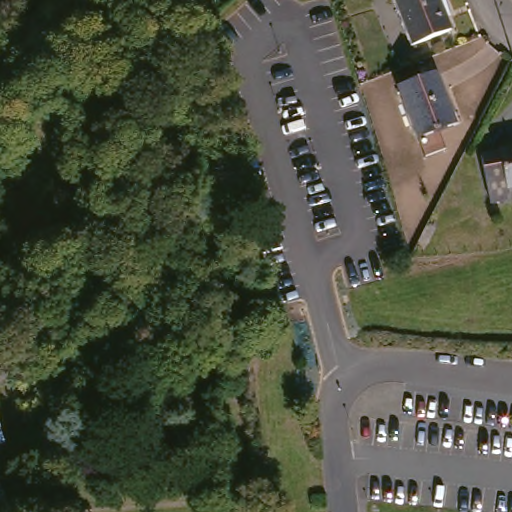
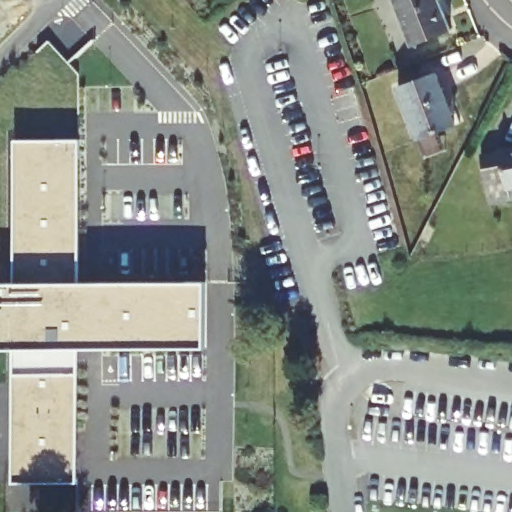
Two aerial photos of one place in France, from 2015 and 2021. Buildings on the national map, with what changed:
unchanged [(392,0),(438,0),(450,30),(409,46),(392,0)]
unchanged [(418,140),(398,88),(435,74),(454,126),(418,140)]
new [(16,350),(0,351),(0,287),(16,286),(15,142),(78,142),(79,286),(204,286),(204,350),(78,350),(79,484),(16,482),(16,350)]
unchanged [(508,190),(509,199),(490,204),(480,156),(498,152),(498,151),(512,148),(512,189),(508,190)]
demolished [(16,510),(11,512),(0,512),(0,474),(2,473),(16,510)]
new [(223,482),(223,512),(127,512),(79,512),(79,484),(223,482)]

